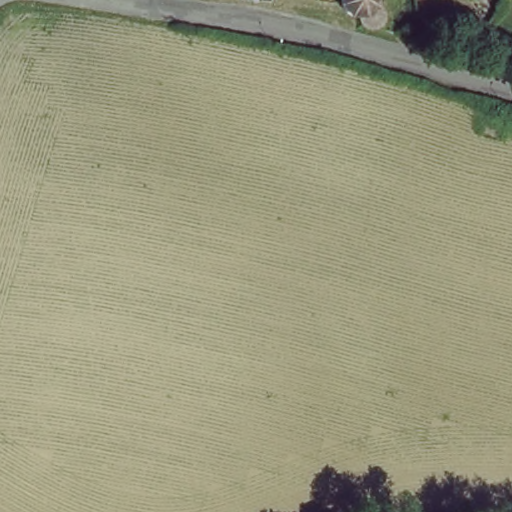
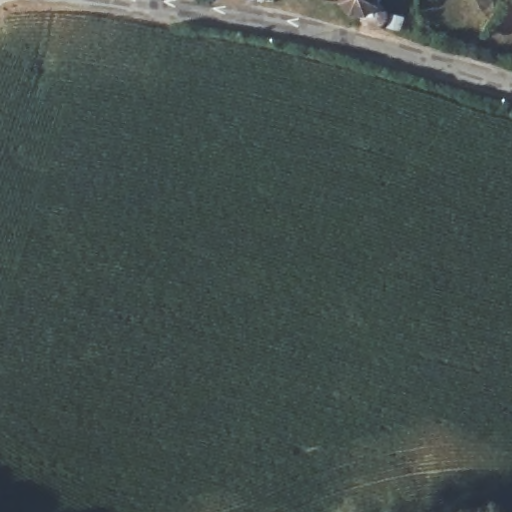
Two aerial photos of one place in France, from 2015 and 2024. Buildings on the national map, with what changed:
unchanged [(359,23),(353,23),(346,20),(340,13),(338,3),(338,0),(375,0),(375,1),(373,10),(382,24),(376,33),(365,31),(359,23)]

